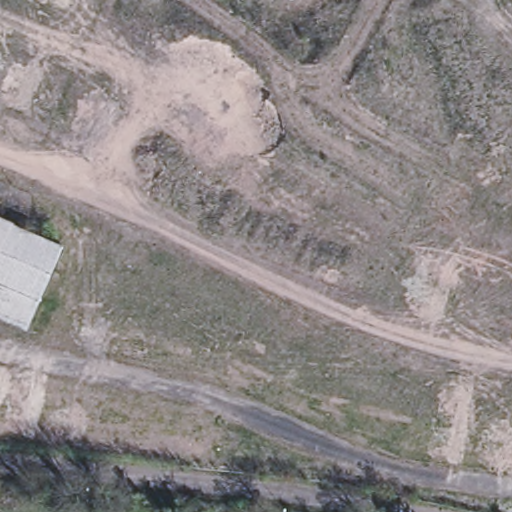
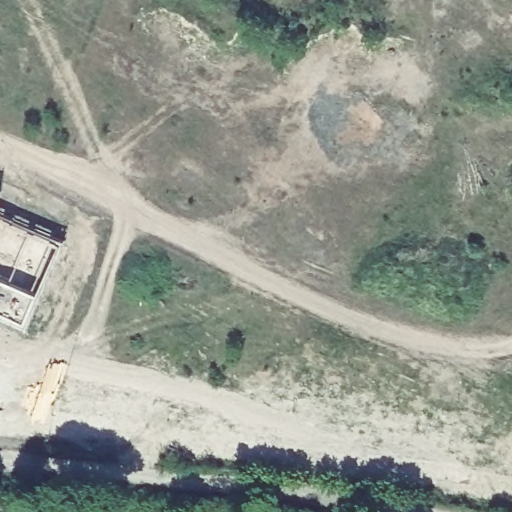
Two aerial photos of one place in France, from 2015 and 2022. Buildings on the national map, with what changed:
unchanged [(24,325),(0,315),(0,218),(60,244),(24,325)]

